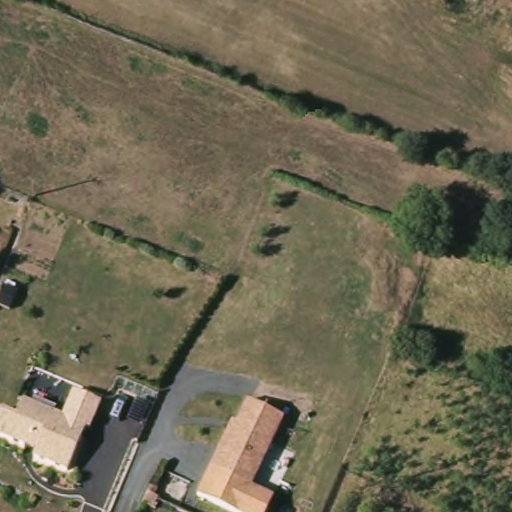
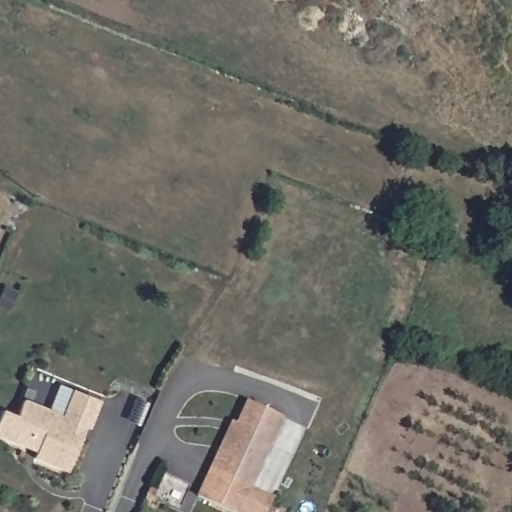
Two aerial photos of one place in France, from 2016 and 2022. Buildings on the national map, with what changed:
unchanged [(81,431),(65,477),(34,466),(36,460),(0,447),(0,420),(11,424),(17,407),(57,422),(66,395),(95,405),(85,433),(81,431)]
unchanged [(283,411),(252,483),(211,465),(220,445),(232,417),(237,419),(246,396),(283,411)]
unchanged [(225,471),(252,483),(241,512),(225,512),(199,498),(211,465),(225,471)]
unchanged [(152,508),(141,504),(144,498),(146,491),(154,495),(151,501),(155,503),(152,508)]

